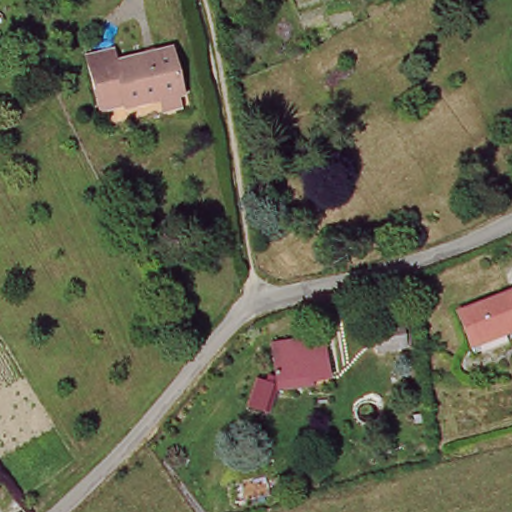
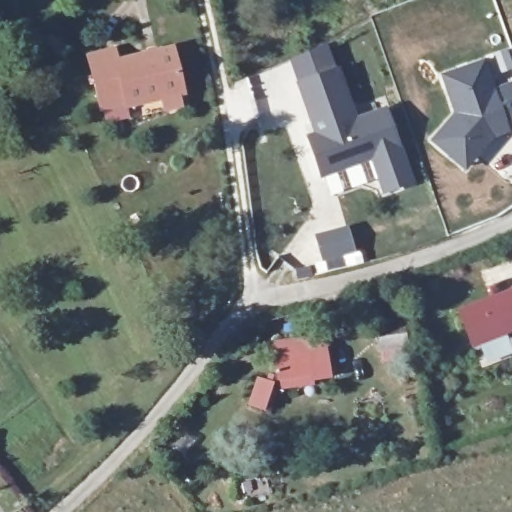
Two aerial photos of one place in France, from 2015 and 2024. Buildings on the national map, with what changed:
unchanged [(117,63),(172,54),(180,98),(127,108),(125,96),(98,101),(87,54),(115,49),(117,63)]
new [(451,113),(437,73),(485,56),(495,86),(512,133),(494,141),(465,173),(426,140),(451,113)]
new [(295,83),(338,68),(355,117),(385,106),(412,184),(380,195),(369,161),(318,179),(305,135),(312,133),(295,83)]
new [(512,79),(512,133),(495,86),(512,79)]
unchanged [(512,290),(512,316),(460,327),(457,301),(512,288),(512,290)]
unchanged [(463,346),(460,327),(512,316),(512,335),(463,346)]
unchanged [(402,351),(375,350),(375,324),(402,323),(402,351)]
unchanged [(274,391),(273,370),(273,337),(308,337),(307,347),(327,350),(327,379),(307,379),(307,390),(274,391)]

